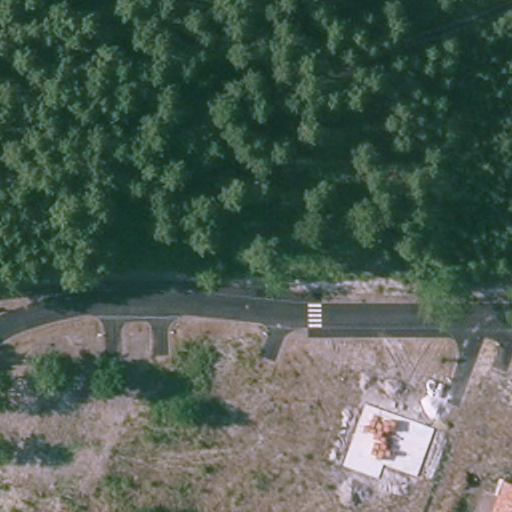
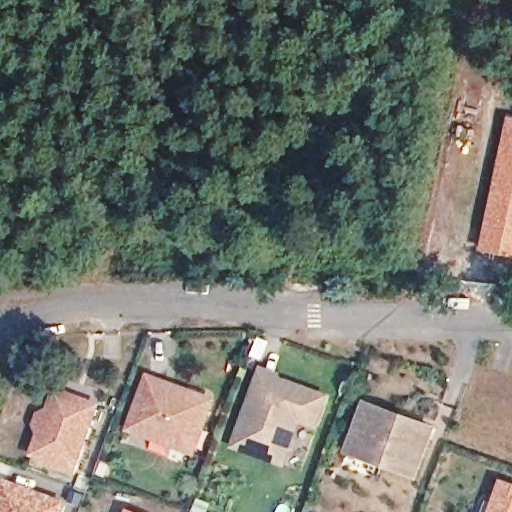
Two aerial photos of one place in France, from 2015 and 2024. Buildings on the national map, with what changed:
new [(512,117),(512,258),(477,251),(506,116),(512,117)]
new [(302,424),(285,467),(231,447),(260,366),(283,373),(281,378),(332,396),(319,430),(302,424)]
new [(147,373),(218,399),(197,457),(126,431),(147,373)]
unchanged [(39,424),(44,411),(52,408),(56,397),(67,392),(76,395),(86,398),(102,404),(79,469),(36,454),(46,427),(39,424)]
new [(363,399),(439,426),(419,481),(345,454),(363,399)]
unchanged [(500,479),(512,483),(512,512),(489,512),(500,479)]
new [(9,481),(69,503),(65,512),(0,512),(0,504),(9,481)]
new [(129,509),(137,512),(127,512),(129,509)]

